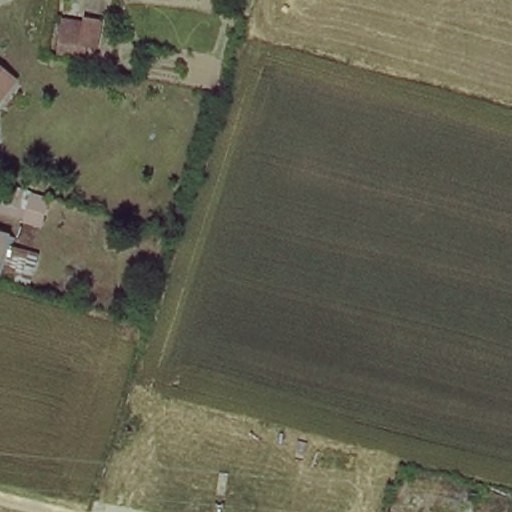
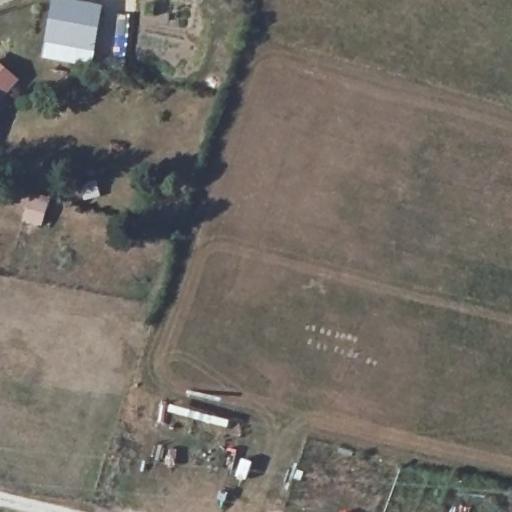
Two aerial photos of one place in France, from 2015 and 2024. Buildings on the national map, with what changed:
new [(76,0),(104,5),(92,70),(41,59),(50,0),(76,0)]
demolished [(100,41),(77,37),(76,52),(62,50),(66,19),(85,21),(86,14),(104,16),(100,41)]
unchanged [(0,98),(0,75),(12,84),(0,98)]
unchanged [(43,227),(0,214),(0,182),(52,197),(43,227)]
unchanged [(11,245),(40,253),(31,290),(0,282),(0,228),(14,232),(11,245)]

